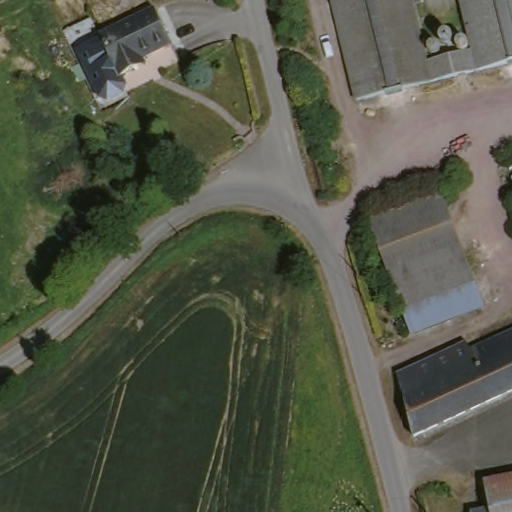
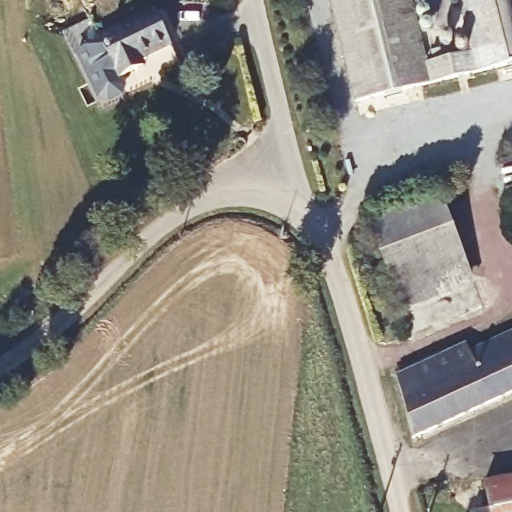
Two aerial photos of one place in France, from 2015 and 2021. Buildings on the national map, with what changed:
unchanged [(364,99),(338,0),(421,0),(435,56),(474,46),(462,0),(512,0),(512,61),(364,99)]
unchanged [(168,48),(139,62),(141,66),(118,77),(99,36),(151,12),(168,48)]
unchanged [(118,77),(121,75),(127,87),(123,96),(108,102),(98,98),(76,52),(100,40),(118,77)]
unchanged [(440,202),(476,300),(409,326),(373,228),(440,202)]
unchanged [(415,433),(398,375),(466,345),(469,352),(512,333),(512,391),(415,433)]
unchanged [(496,498),(495,479),(512,475),(512,512),(497,512),(496,498)]
unchanged [(470,501),(496,498),(497,512),(471,512),(470,501)]

